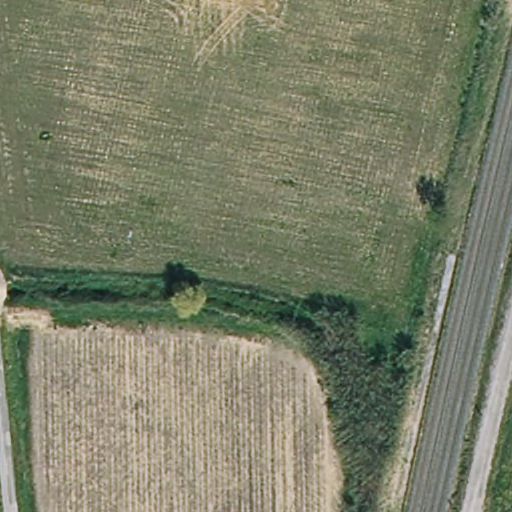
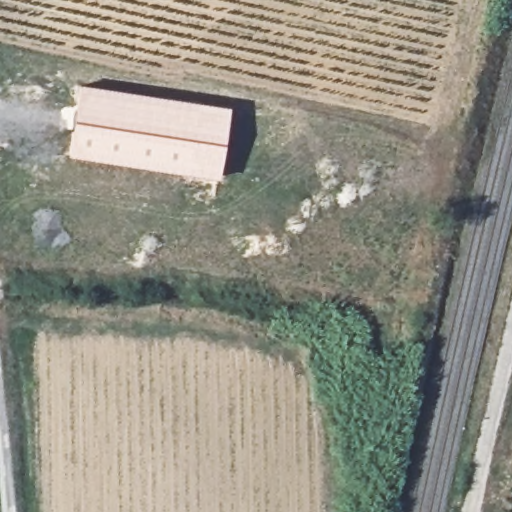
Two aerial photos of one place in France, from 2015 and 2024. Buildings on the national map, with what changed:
new [(68,157),(79,85),(230,108),(219,179),(68,157)]

